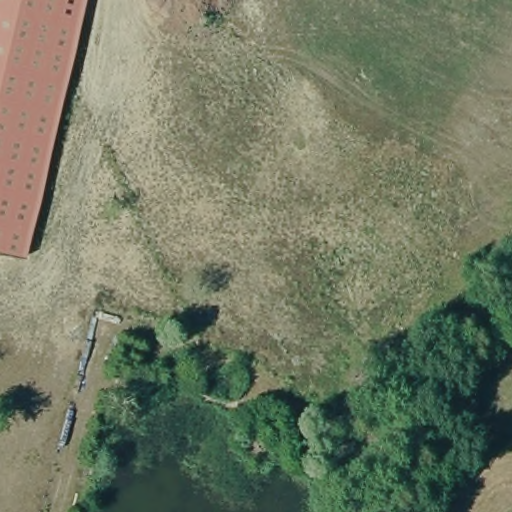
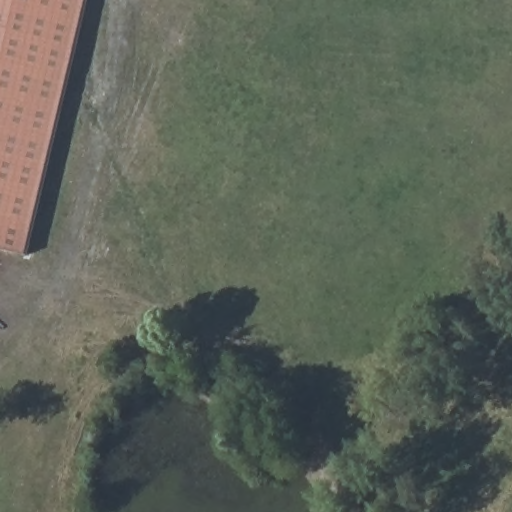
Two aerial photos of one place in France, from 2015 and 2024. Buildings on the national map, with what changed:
unchanged [(0,250),(0,0),(86,0),(26,256),(0,250)]

